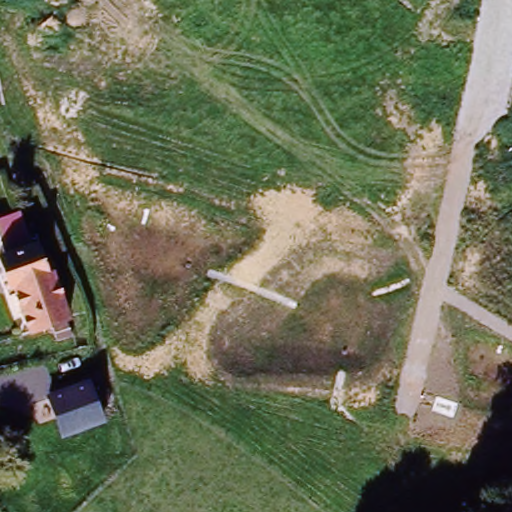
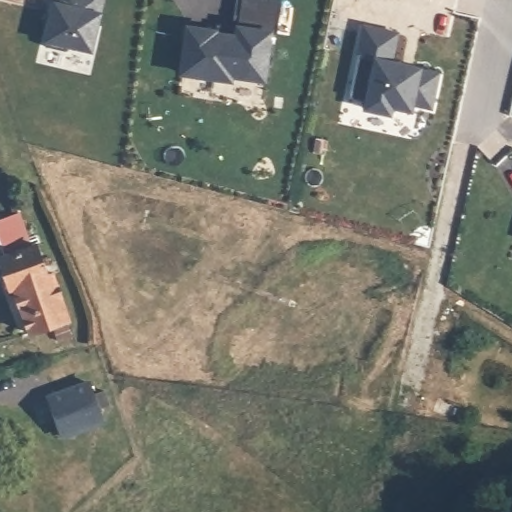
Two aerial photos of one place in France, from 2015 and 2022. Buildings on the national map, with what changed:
new [(96,52),(45,41),(54,0),(106,0),(104,11),(96,52)]
new [(281,4),(274,30),(268,81),(235,78),(234,82),(179,75),(186,25),(216,29),(218,22),(233,26),(237,0),(271,0),(271,1),(281,4)]
new [(399,32),(391,60),(422,67),(440,71),(433,110),(414,105),(413,111),(394,109),(392,115),(363,110),(365,99),(352,97),(360,55),(357,55),(362,25),(399,32)]
unchanged [(31,244),(41,271),(46,270),(62,325),(20,339),(3,286),(0,287),(0,254),(2,253),(0,248),(0,217),(16,211),(26,245),(31,244)]
unchanged [(68,441),(49,388),(87,375),(105,428),(68,441)]

